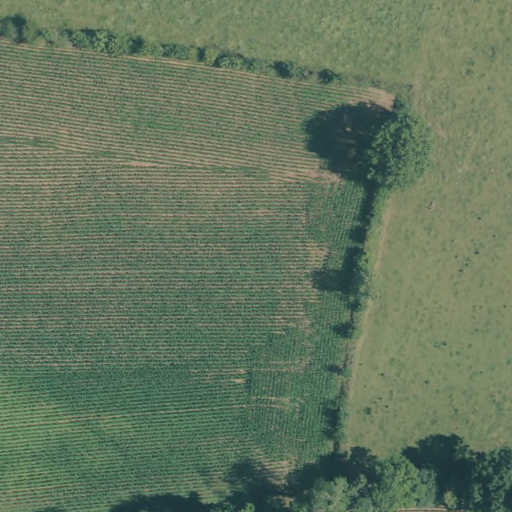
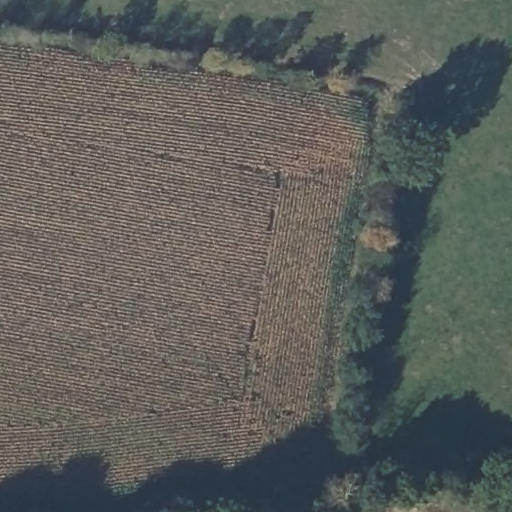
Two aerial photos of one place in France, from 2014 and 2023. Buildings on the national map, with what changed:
[]

